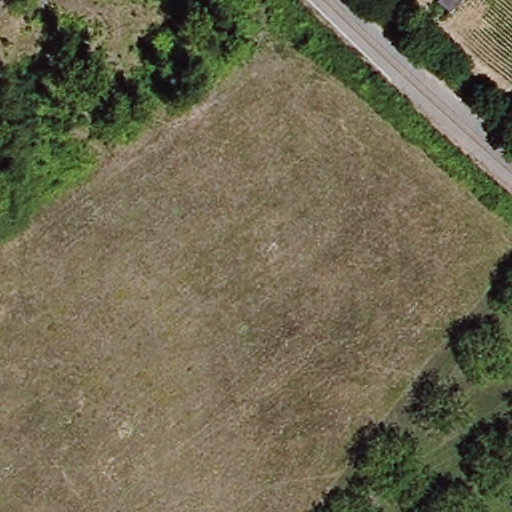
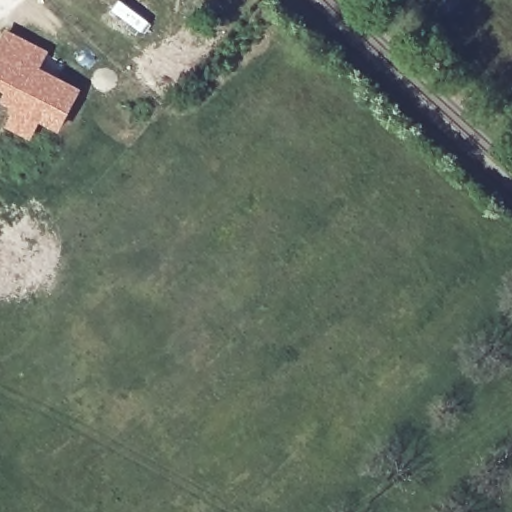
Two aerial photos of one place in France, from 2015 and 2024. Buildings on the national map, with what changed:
new [(80,90),(59,129),(40,119),(31,138),(10,126),(19,108),(5,101),(25,63),(0,51),(0,47),(7,32),(67,64),(60,79),(80,90)]

